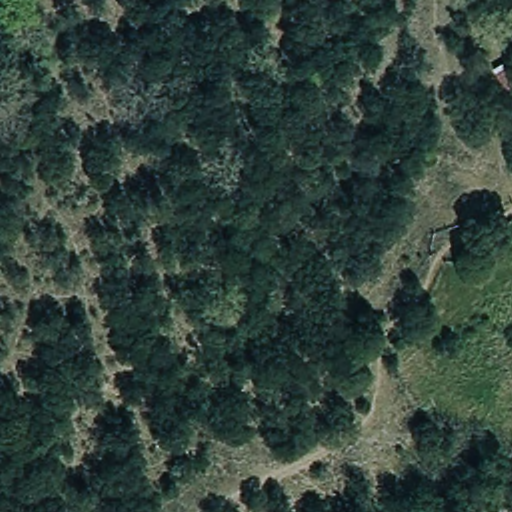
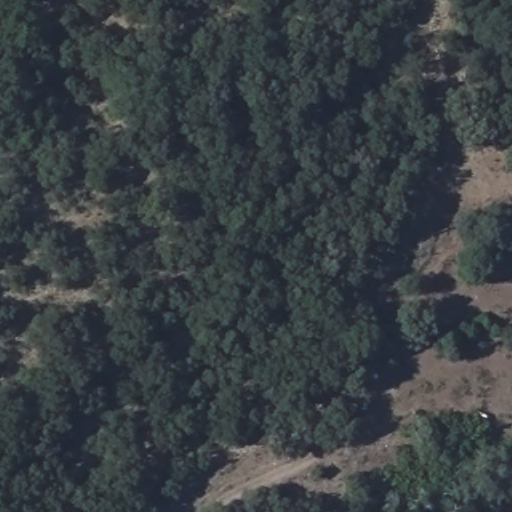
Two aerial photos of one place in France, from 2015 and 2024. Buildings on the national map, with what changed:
unchanged [(512,77),(512,95),(507,98),(494,75),(504,66),(512,77)]

